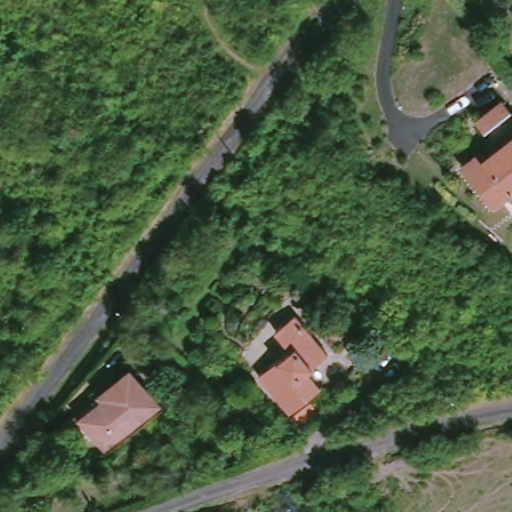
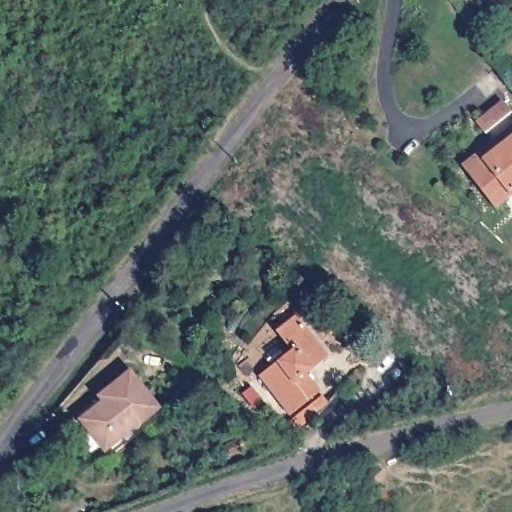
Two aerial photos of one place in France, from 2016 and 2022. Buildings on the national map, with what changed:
unchanged [(490,198),(463,166),(501,135),(496,129),(486,135),(471,118),(493,98),(512,119),(512,180),(490,198)]
unchanged [(300,372),(314,390),(283,418),(249,380),(291,341),(277,323),(296,305),(330,345),(300,372)]
unchanged [(100,450),(76,418),(107,398),(102,390),(129,373),(155,409),(100,450)]
unchanged [(281,426),(306,403),(316,413),(298,439),(281,426)]

